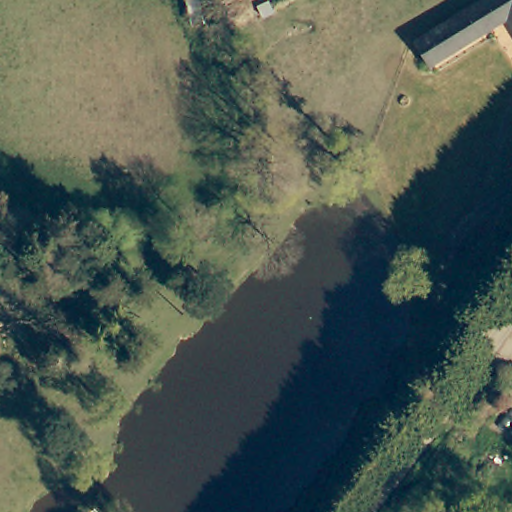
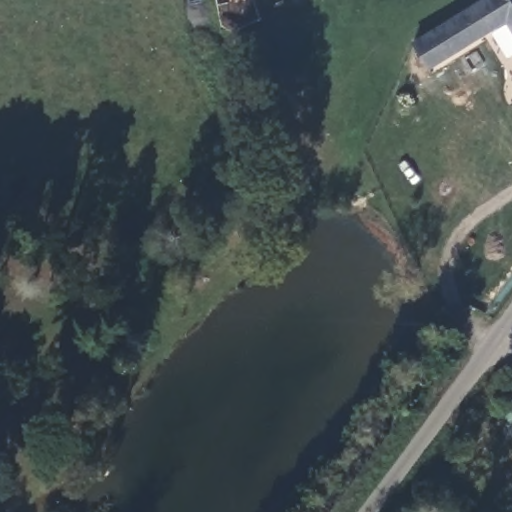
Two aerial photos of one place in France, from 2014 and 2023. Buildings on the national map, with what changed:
unchanged [(505,19),(424,69),(409,42),(480,0),(512,0),(512,31),(505,19)]

